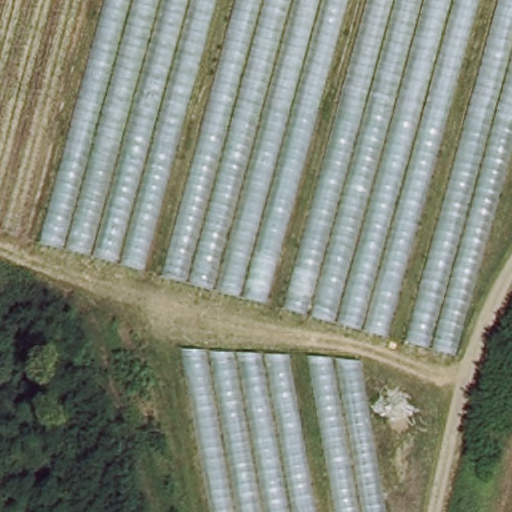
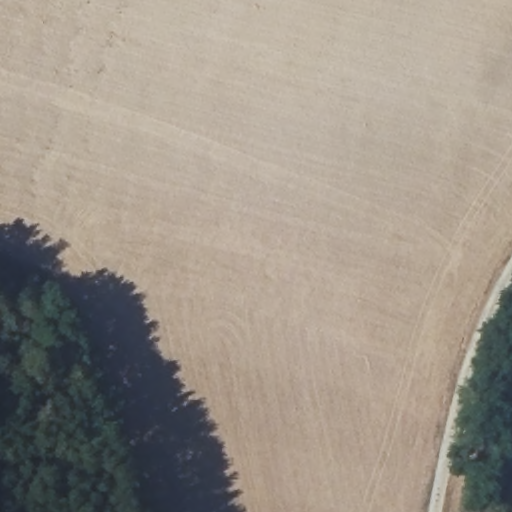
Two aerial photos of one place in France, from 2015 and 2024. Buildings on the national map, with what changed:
new [(0,229),(0,0),(87,0),(21,235),(0,229)]
demolished [(44,242),(110,0),(222,0),(151,269),(44,242)]
demolished [(351,0),(270,304),(166,276),(241,0),(351,0)]
demolished [(374,0),(484,0),(391,333),(291,308),(374,0)]
demolished [(458,352),(413,340),(507,0),(512,0),(512,158),(458,352)]
demolished [(320,512),(215,512),(186,351),(293,355),(320,512)]
demolished [(365,361),(390,512),(342,512),(315,357),(365,361)]

